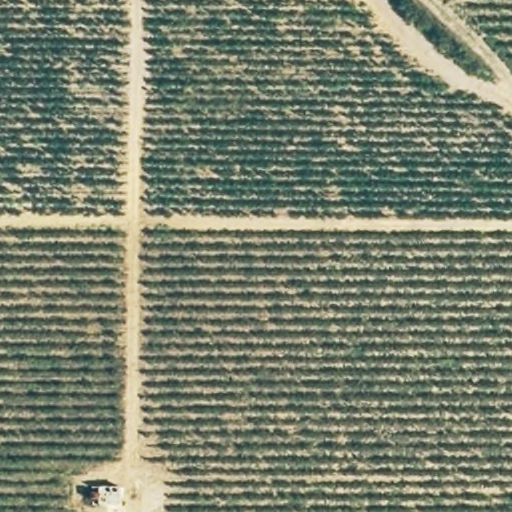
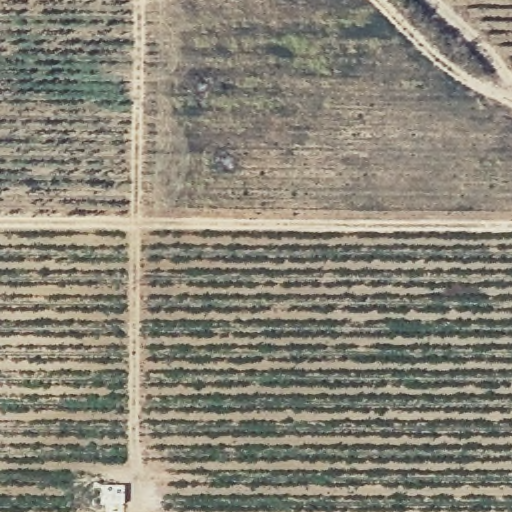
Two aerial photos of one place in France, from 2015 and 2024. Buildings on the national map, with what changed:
unchanged [(121,487),(120,507),(99,506),(98,488),(121,487)]

